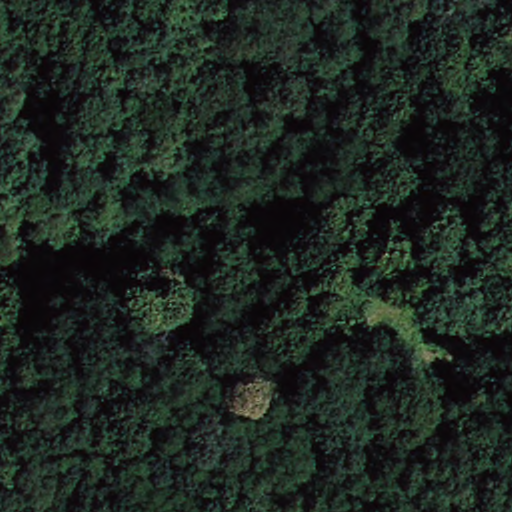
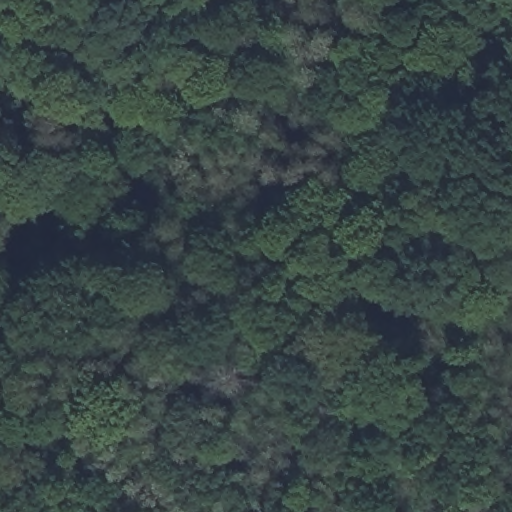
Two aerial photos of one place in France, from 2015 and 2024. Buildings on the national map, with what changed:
unchanged [(252,458),(271,463),(267,477),(248,471),(252,458)]

